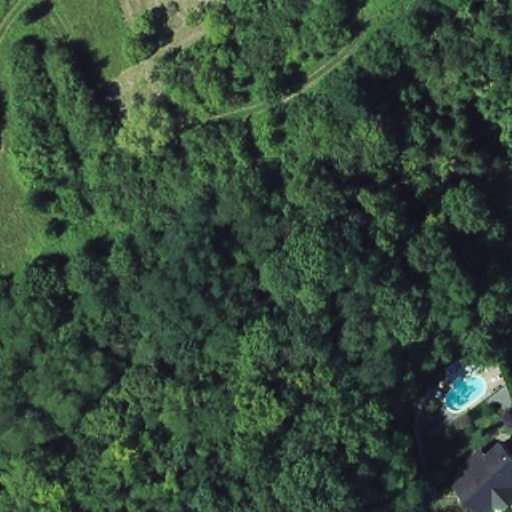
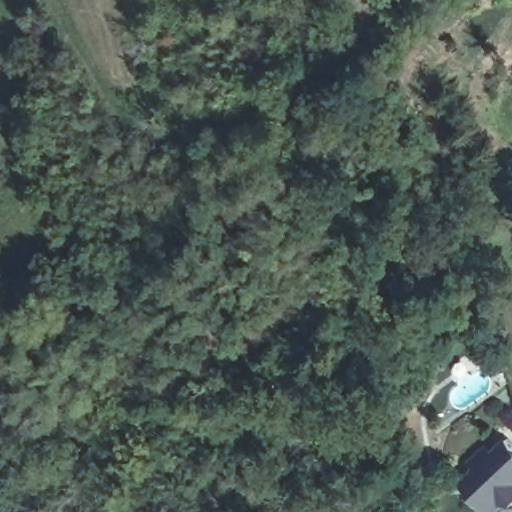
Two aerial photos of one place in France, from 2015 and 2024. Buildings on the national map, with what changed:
unchanged [(507,501),(500,501),(496,497),(484,508),(478,502),(458,481),(470,471),(472,468),(467,463),(466,462),(466,461),(478,449),(485,456),(503,439),(512,448),(512,500),(510,503),(507,501)]

